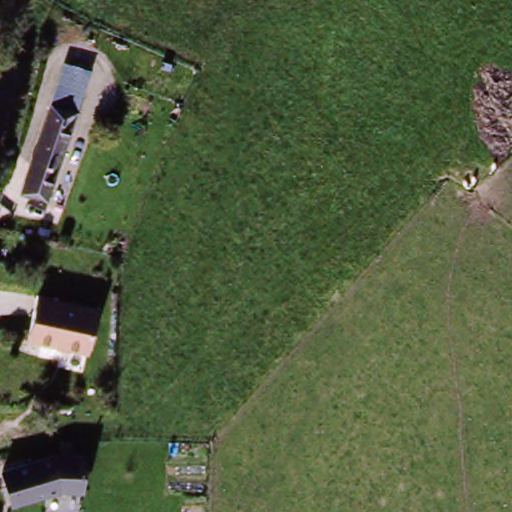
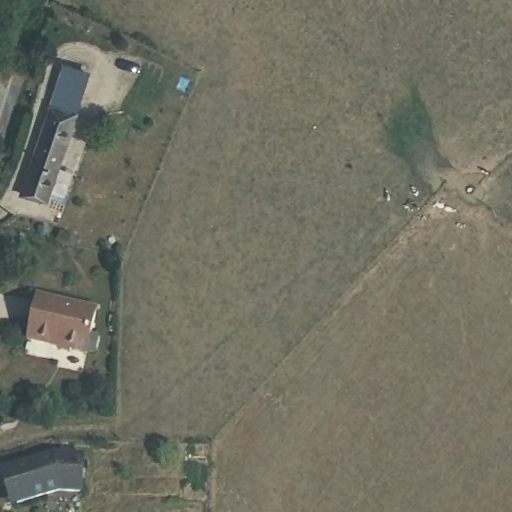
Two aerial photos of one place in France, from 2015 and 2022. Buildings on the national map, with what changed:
unchanged [(72,46),(96,52),(55,175),(33,169),(72,46)]
unchanged [(93,312),(86,357),(22,345),(34,297),(93,312)]
unchanged [(60,451),(91,454),(87,492),(65,490),(16,505),(4,471),(60,451)]

